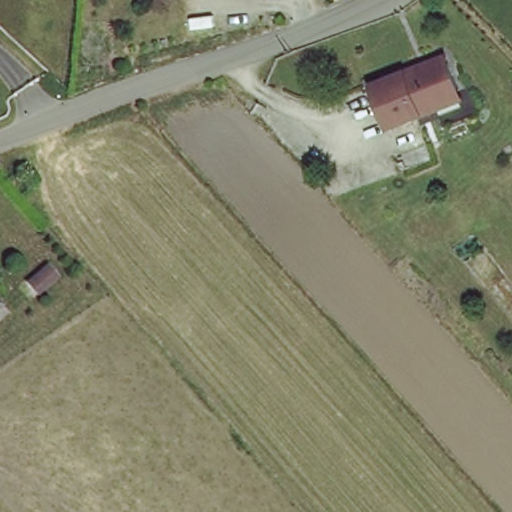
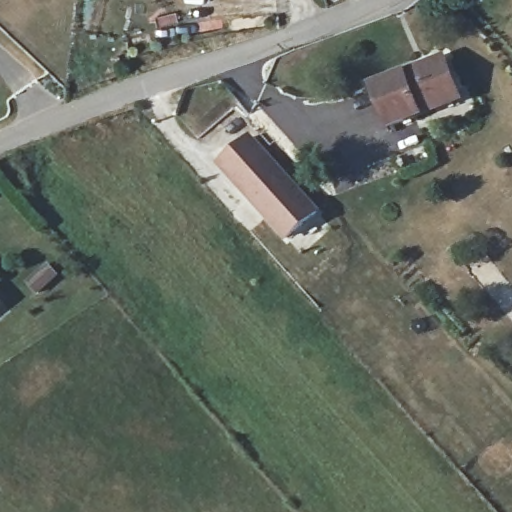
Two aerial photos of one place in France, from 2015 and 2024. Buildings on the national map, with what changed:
unchanged [(439,104),(387,125),(370,84),(442,54),(456,87),(460,95),(439,104)]
new [(250,133),(321,212),(287,243),(216,165),(250,133)]

